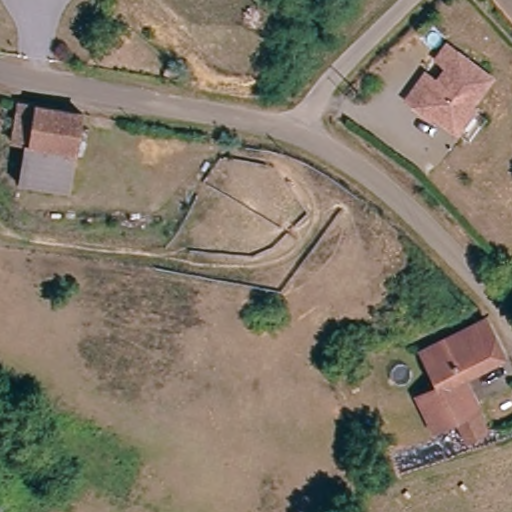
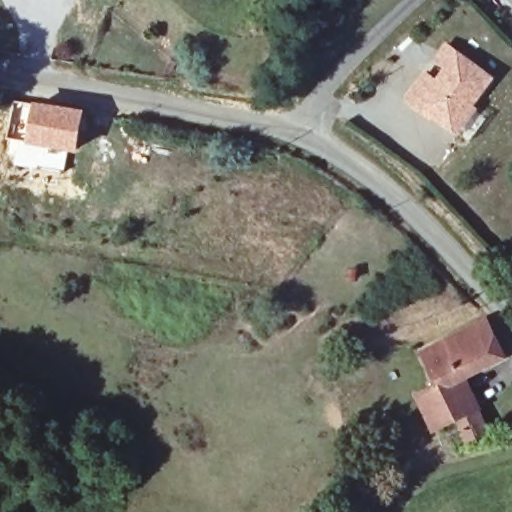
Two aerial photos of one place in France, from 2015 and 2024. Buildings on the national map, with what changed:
unchanged [(432,75),(441,82),(461,52),(493,75),(457,127),(431,107),(427,111),(412,100),(432,75)]
unchanged [(31,149),(25,188),(21,187),(11,142),(17,97),(42,105),(35,150),(31,149)]
unchanged [(79,156),(35,150),(42,105),(85,112),(79,156)]
unchanged [(72,196),(25,188),(31,149),(35,150),(79,156),(72,196)]
unchanged [(485,322),(504,353),(462,381),(489,430),(458,447),(446,425),(437,429),(422,400),(438,390),(420,357),(485,322)]

